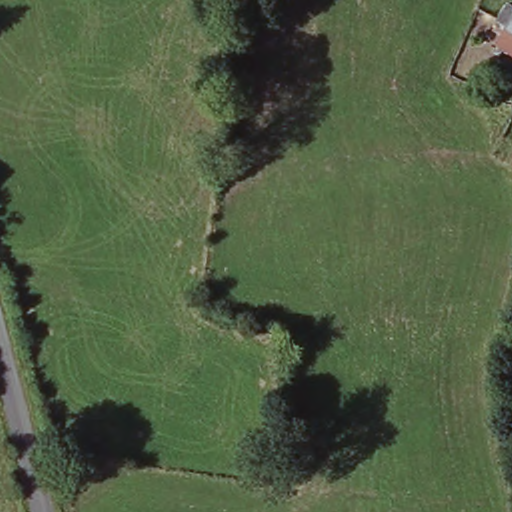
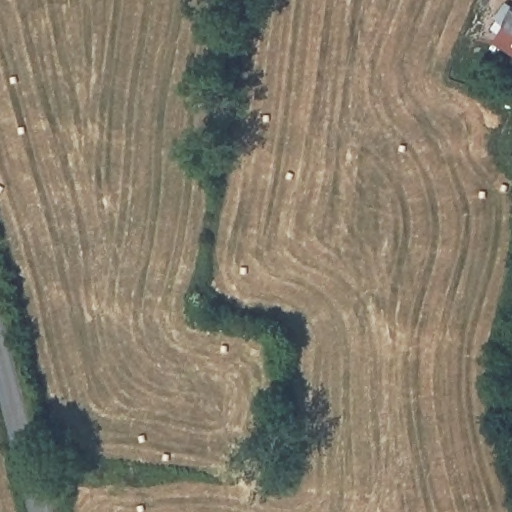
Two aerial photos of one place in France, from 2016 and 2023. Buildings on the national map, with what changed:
unchanged [(493,49),(506,34),(487,20),(496,9),(506,14),(512,4),(512,61),(493,49)]

